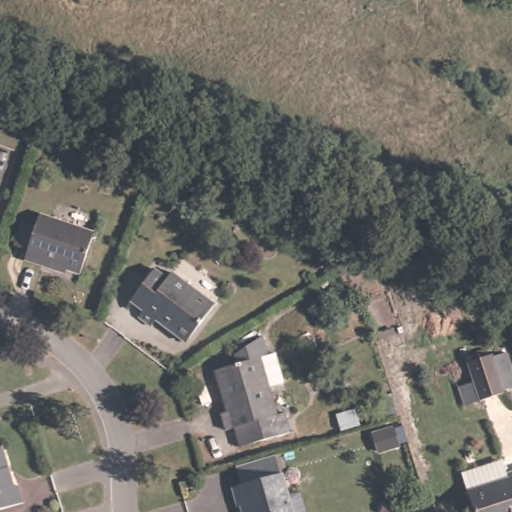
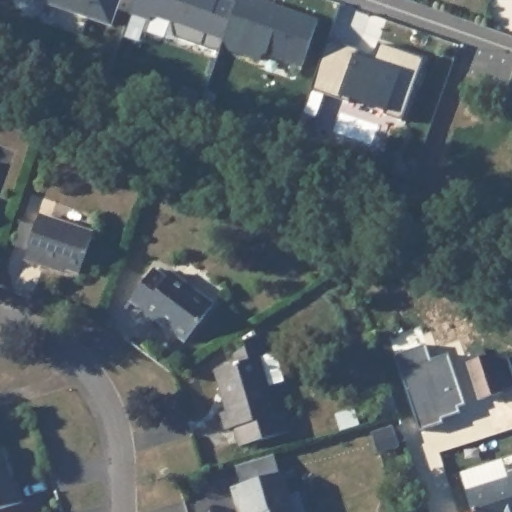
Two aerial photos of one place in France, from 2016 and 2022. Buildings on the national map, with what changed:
new [(30,0),(121,0),(110,27),(30,0)]
new [(228,0),(236,2),(237,0),(255,0),(317,21),(302,68),(263,55),(260,63),(220,50),(219,52),(173,36),(170,23),(151,16),(150,22),(129,15),(134,0),(228,0)]
new [(326,39),(356,48),(353,55),(371,60),(376,44),(421,59),(400,121),(380,114),(380,111),(346,99),(345,103),(309,89),(326,39)]
unchanged [(75,266),(39,253),(36,260),(15,254),(32,208),(90,224),(75,266)]
unchanged [(171,274),(175,269),(214,295),(197,321),(192,319),(180,337),(158,321),(153,327),(137,316),(141,308),(128,300),(155,262),(171,274)]
new [(427,346),(432,362),(450,356),(458,386),(465,405),(462,405),(464,411),(441,418),(442,422),(418,430),(396,356),(427,346)]
unchanged [(512,393),(494,399),(481,362),(506,352),(512,367),(512,393)]
unchanged [(235,427),(224,430),(217,412),(222,411),(210,371),(258,357),(275,413),(289,408),(295,429),(264,437),(242,446),(235,427)]
unchanged [(4,449),(13,485),(22,485),(26,503),(0,511),(0,451),(4,449)]
unchanged [(235,486),(244,483),(238,466),(275,454),(281,471),(296,512),(246,512),(235,486)]
unchanged [(491,477),(512,470),(512,512),(474,512),(468,493),(493,485),(491,477)]

